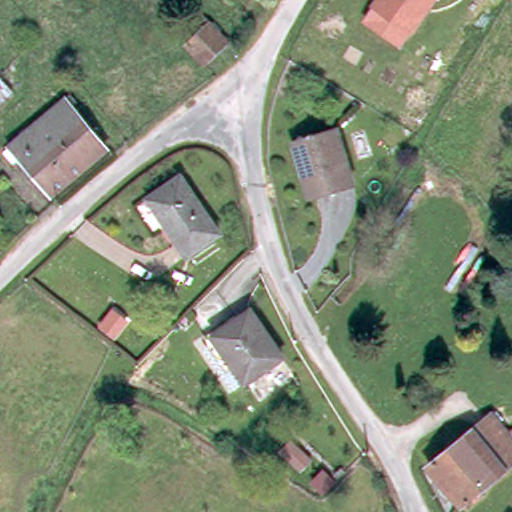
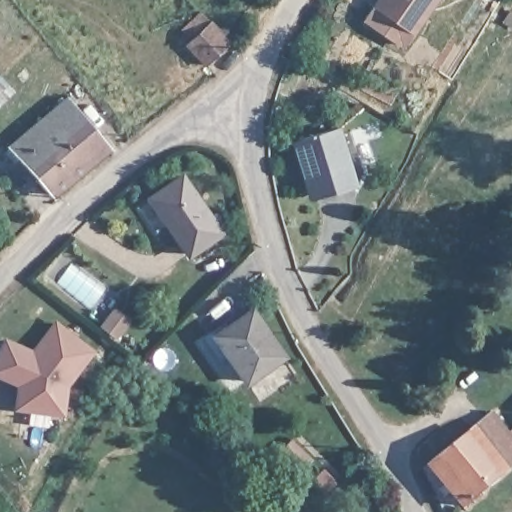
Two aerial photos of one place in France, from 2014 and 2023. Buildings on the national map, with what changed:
unchanged [(399,49),(362,21),(377,0),(433,0),(399,49)]
unchanged [(235,47),(210,70),(192,50),(197,45),(188,35),(206,18),(235,47)]
unchanged [(13,93),(0,105),(0,79),(13,93)]
unchanged [(77,102),(72,106),(107,149),(53,196),(20,159),(13,164),(4,153),(70,96),(77,102)]
unchanged [(330,193),(330,190),(311,195),(301,161),(299,162),(293,142),(337,129),(353,186),(330,193)]
unchanged [(220,233),(188,256),(150,199),(181,177),(220,233)]
unchanged [(206,342),(214,337),(251,311),(282,357),(245,382),(235,367),(227,373),(206,342)]
new [(54,318),(95,350),(67,388),(62,416),(13,409),(15,386),(0,379),(0,346),(4,337),(30,349),(54,318)]
unchanged [(512,440),(512,466),(484,488),(452,448),(492,415),(512,440)]
unchanged [(428,467),(452,448),(484,488),(462,506),(450,492),(444,497),(438,490),(444,485),(428,467)]

